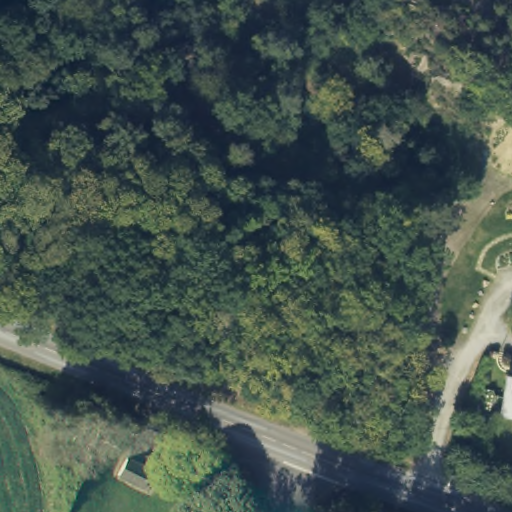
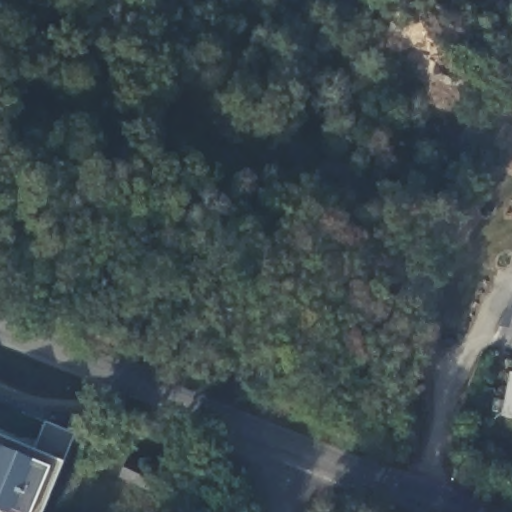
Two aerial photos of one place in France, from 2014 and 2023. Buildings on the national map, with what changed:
unchanged [(499,414),(509,374),(512,375),(512,417),(499,414)]
new [(44,512),(0,512),(0,438),(35,452),(45,422),(73,436),(63,465),(44,512)]
new [(124,458),(149,469),(139,489),(113,477),(124,458)]
demolished [(140,495),(114,483),(124,464),(150,476),(140,495)]

